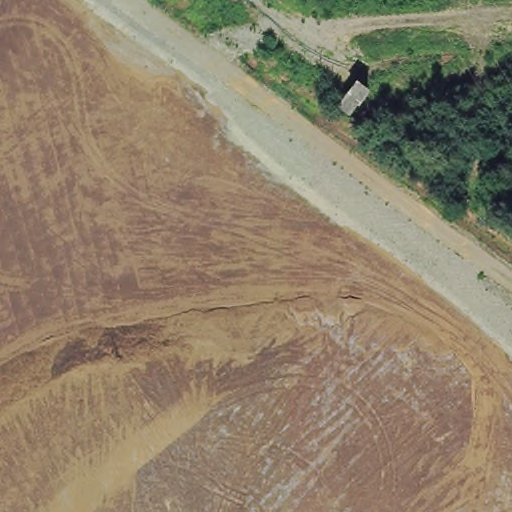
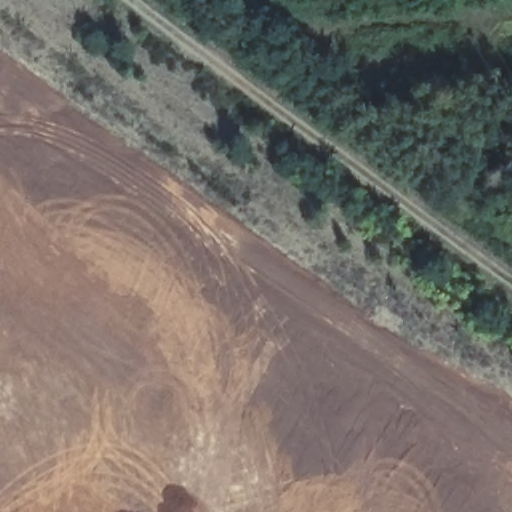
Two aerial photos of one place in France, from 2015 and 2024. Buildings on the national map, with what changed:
unchanged [(362,77),(372,85),(352,109),(342,101),(362,77)]

